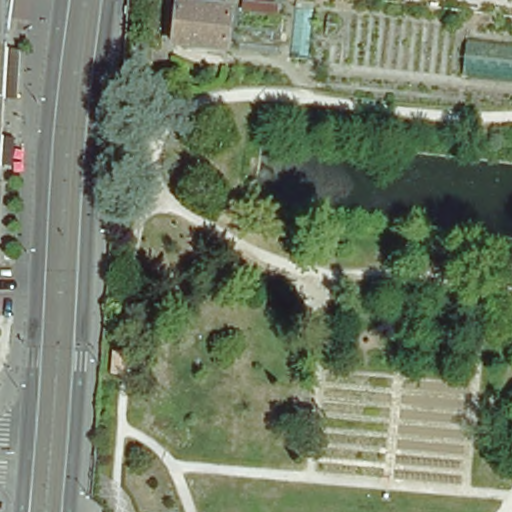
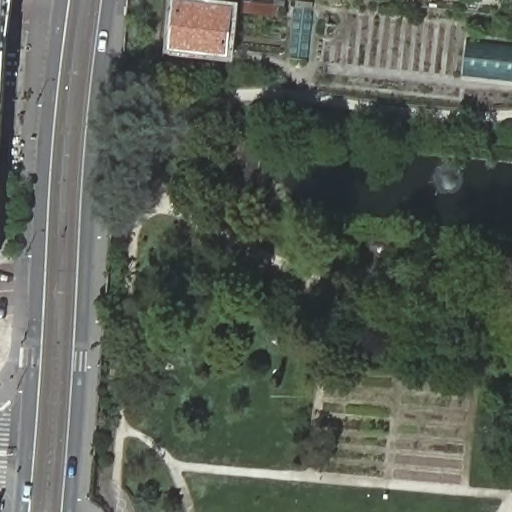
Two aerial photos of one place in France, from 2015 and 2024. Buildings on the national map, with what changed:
unchanged [(5,0),(0,73),(0,0),(5,0)]
unchanged [(286,0),(283,16),(241,11),(243,0),(286,0)]
unchanged [(230,8),(224,51),(171,44),(177,1),(230,8)]
unchanged [(289,58),(295,6),(296,1),(311,3),(310,9),(304,60),(289,58)]
unchanged [(464,39),(512,44),(512,83),(459,76),(464,39)]

